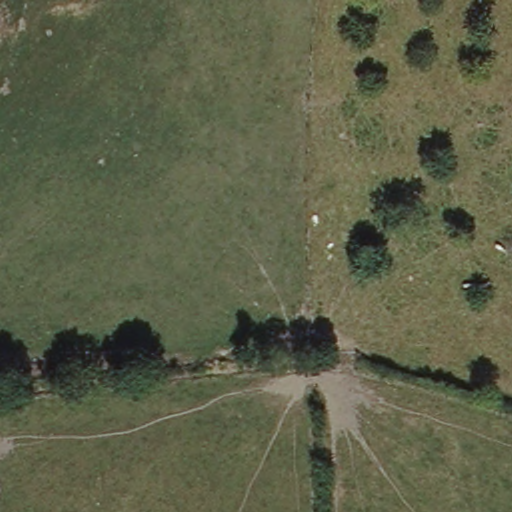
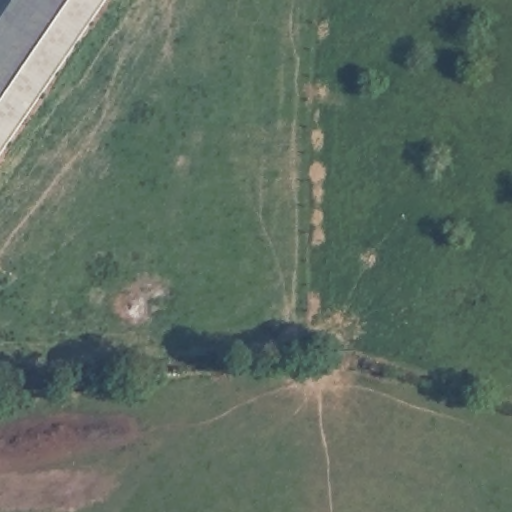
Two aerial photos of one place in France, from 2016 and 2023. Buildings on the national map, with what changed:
new [(11,0),(108,0),(0,159),(0,17),(11,0)]

